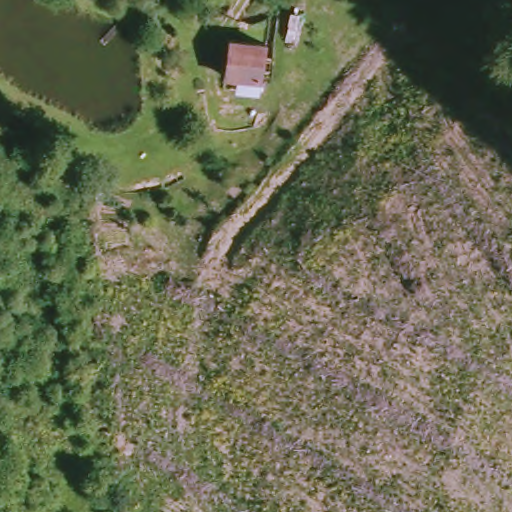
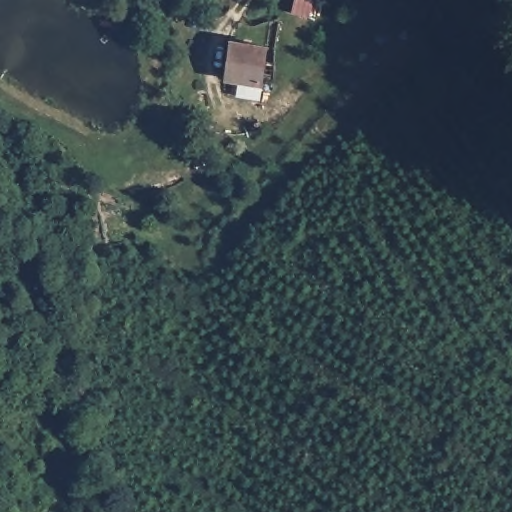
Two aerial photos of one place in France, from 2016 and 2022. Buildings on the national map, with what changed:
unchanged [(238,110),(240,77),(223,75),(225,42),(266,45),(263,79),(260,112),(238,110)]

